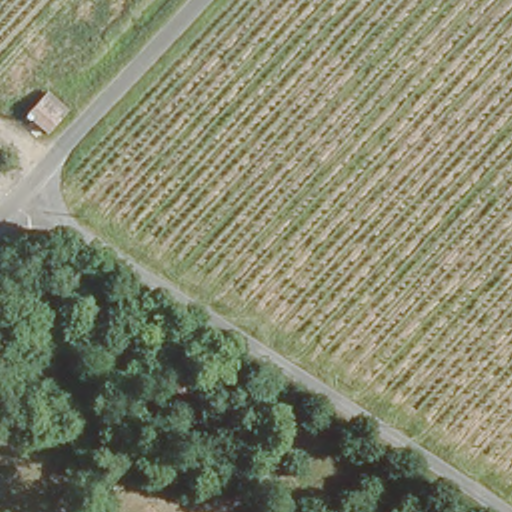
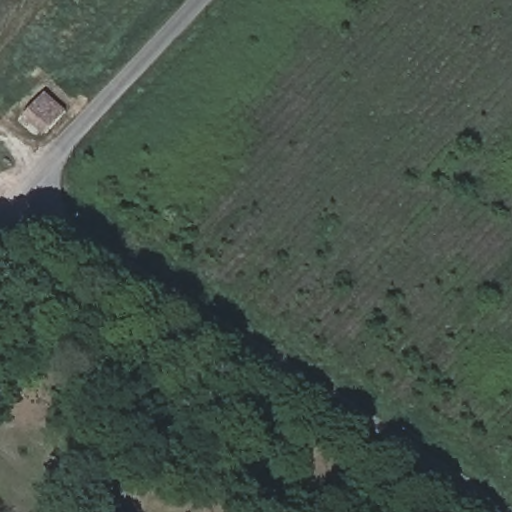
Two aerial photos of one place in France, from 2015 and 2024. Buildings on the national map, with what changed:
unchanged [(68,109),(49,131),(27,112),(46,90),(68,109)]

